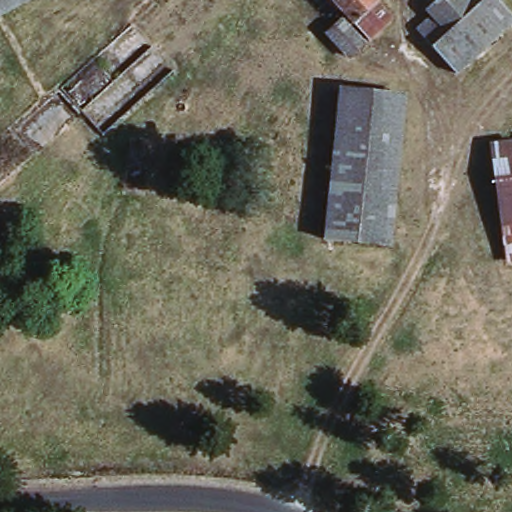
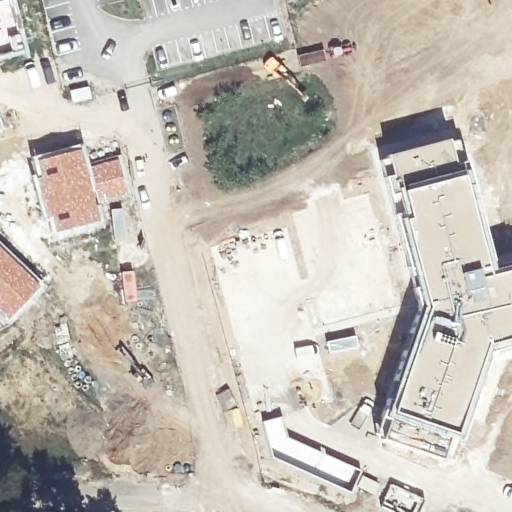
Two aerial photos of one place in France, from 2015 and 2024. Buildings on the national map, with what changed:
demolished [(0,20),(0,0),(37,0),(0,20)]
demolished [(320,0),(366,0),(387,23),(362,46),(343,25),(320,0)]
demolished [(439,0),(496,0),(512,18),(512,22),(457,76),(417,30),(431,16),(426,13),(439,0)]
new [(0,129),(0,121),(2,129),(0,129)]
new [(418,304),(413,277),(384,154),(457,135),(463,165),(481,220),(493,267),(512,262),(512,343),(493,346),(488,347),(453,436),(381,415),(418,304)]
new [(80,144),(86,165),(96,205),(99,221),(53,232),(40,194),(32,155),(80,144)]
new [(117,155),(127,195),(96,205),(86,165),(117,155)]
new [(6,320),(0,315),(0,244),(40,283),(6,320)]
new [(511,258),(512,258),(512,262),(511,258)]
new [(281,415),(287,435),(357,467),(348,485),(277,453),(270,451),(261,420),(281,415)]

